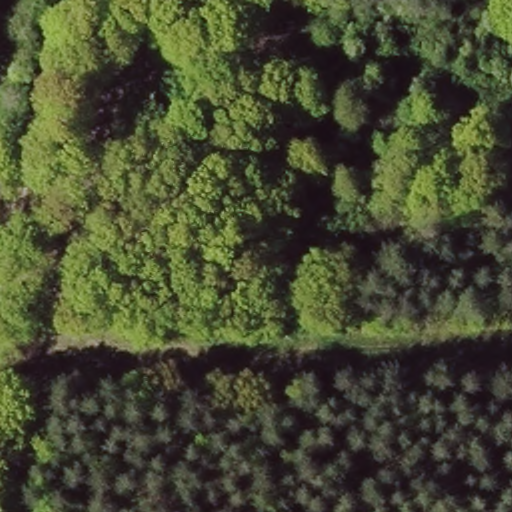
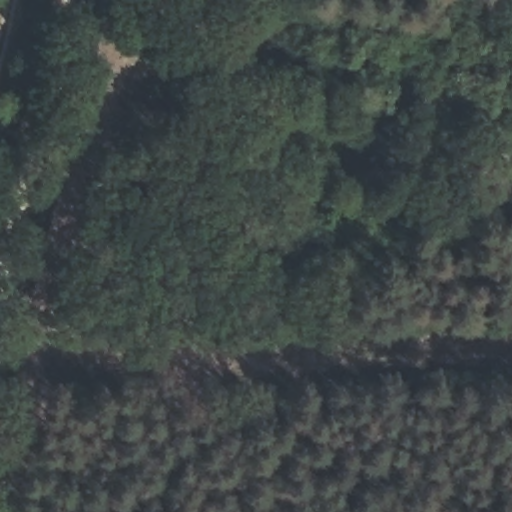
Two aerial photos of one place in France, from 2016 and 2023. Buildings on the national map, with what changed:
unchanged [(509,102),(511,130),(485,133),(481,104),(509,102)]

